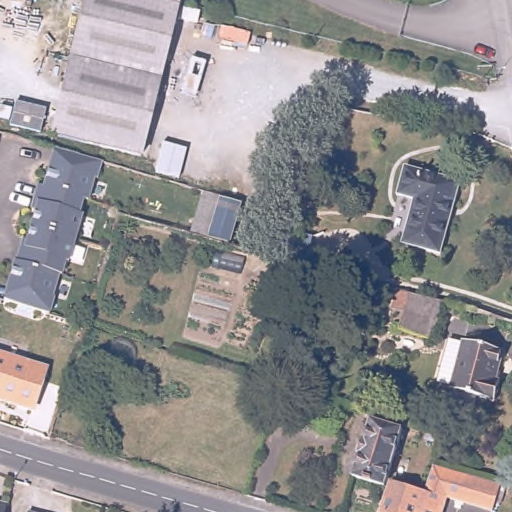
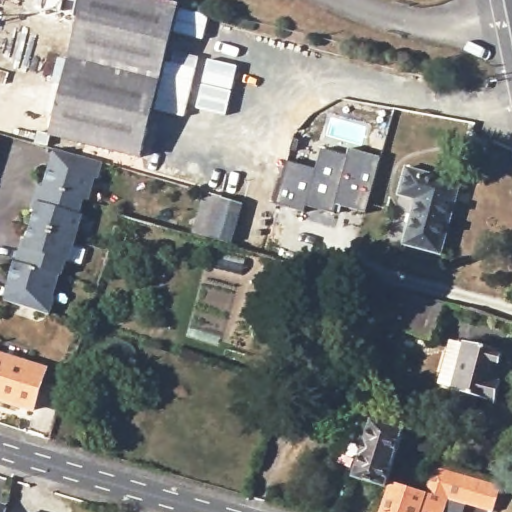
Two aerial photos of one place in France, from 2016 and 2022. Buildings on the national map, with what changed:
unchanged [(182,8),(163,85),(145,160),(56,138),(90,0),(149,0),(182,8)]
unchanged [(8,285),(14,261),(16,262),(20,246),(24,247),(36,202),(32,201),(37,184),(43,186),(47,168),(49,163),(53,147),(54,147),(60,149),(82,156),(102,161),(98,178),(94,177),(93,180),(88,200),(82,198),(78,213),(81,214),(68,261),(65,260),(61,275),(59,274),(52,297),(54,297),(49,315),(35,310),(10,302),(3,300),(8,285)]
new [(365,213),(336,204),(333,213),(307,205),(304,212),(275,203),(288,160),(316,169),(322,149),(346,156),(348,147),(381,156),(365,213)]
unchanged [(412,229),(420,199),(402,194),(410,167),(463,181),(460,193),(444,253),(407,243),(412,229)]
unchanged [(205,190),(249,204),(238,246),(193,232),(205,190)]
unchanged [(453,308),(440,344),(409,333),(415,316),(401,312),(406,295),(453,308)]
unchanged [(446,383),(455,352),(459,339),(473,344),(474,341),(512,352),(512,356),(505,381),(509,382),(504,401),(486,396),(482,408),(476,411),(462,407),(458,401),(462,389),(461,389),(461,388),(446,383)]
unchanged [(32,410),(0,400),(0,355),(44,369),(32,410)]
unchanged [(370,421),(400,430),(384,486),(352,477),(370,421)]
unchanged [(390,482),(423,491),(430,467),(460,474),(461,475),(470,477),(483,481),(492,483),(498,485),(491,511),(445,499),(441,512),(382,512),(389,488),(390,482)]
unchanged [(4,512),(0,512),(0,506),(5,507),(4,512)]

